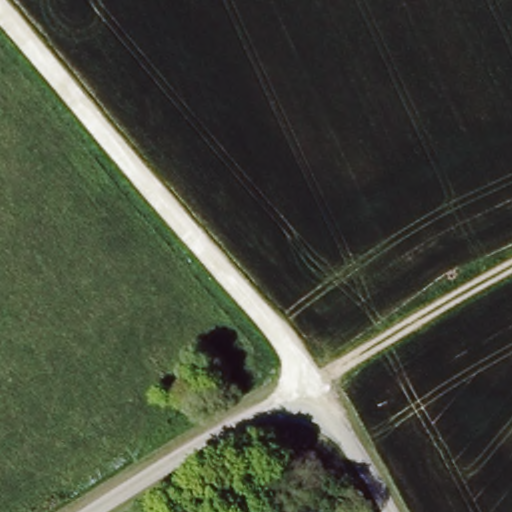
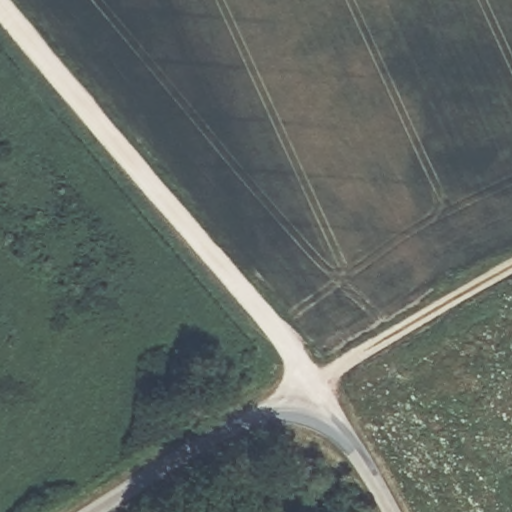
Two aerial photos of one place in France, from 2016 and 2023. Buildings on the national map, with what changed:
[]

